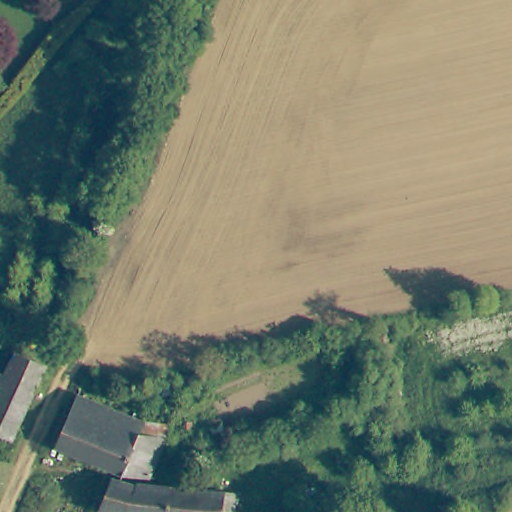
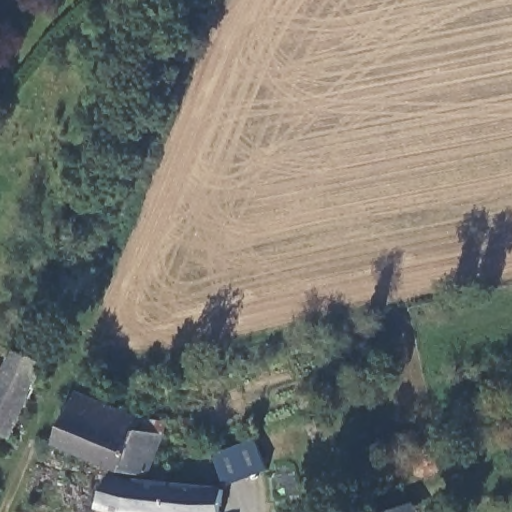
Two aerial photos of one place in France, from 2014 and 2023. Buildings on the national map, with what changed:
unchanged [(0,438),(0,369),(5,357),(35,369),(6,440),(0,438)]
unchanged [(160,437),(146,477),(114,473),(53,449),(76,400),(160,437)]
new [(215,457),(255,440),(268,472),(226,487),(215,457)]
unchanged [(219,512),(95,512),(111,481),(179,489),(221,492),(219,512)]
new [(419,512),(393,512),(417,504),(419,512)]

